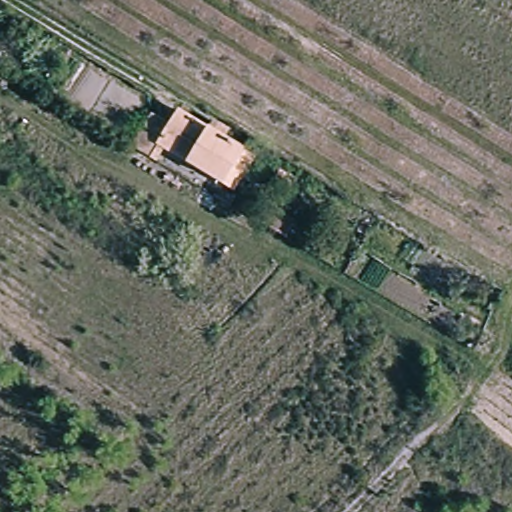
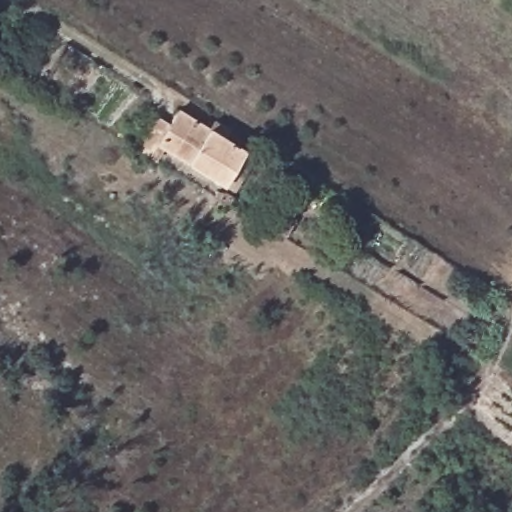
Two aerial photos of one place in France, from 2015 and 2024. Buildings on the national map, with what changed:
unchanged [(156,160),(131,145),(151,112),(169,123),(178,108),(208,127),(213,119),(229,130),(224,137),(255,157),(234,191),(231,195),(234,196),(229,204),(214,195),(221,183),(162,149),(156,160)]
unchanged [(297,179),(289,192),(272,182),(280,168),(297,179)]
unchanged [(269,203),(295,220),(284,237),(270,229),(258,221),(269,203)]

